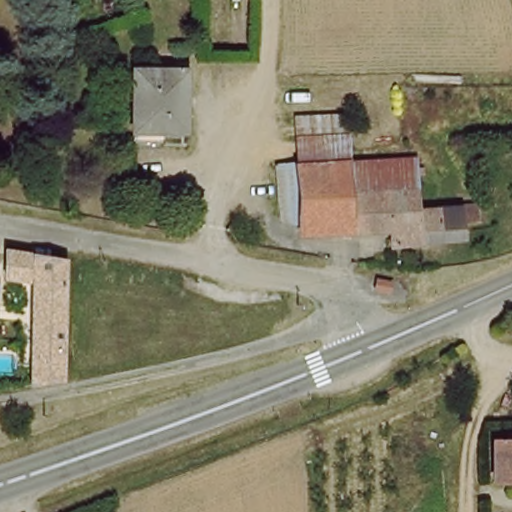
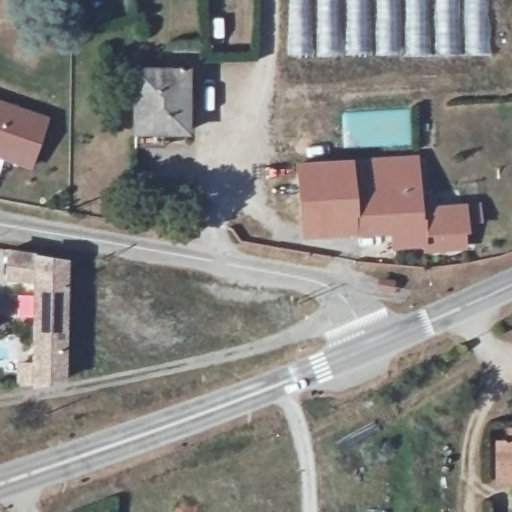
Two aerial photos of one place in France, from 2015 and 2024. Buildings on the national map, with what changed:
new [(487,0),(487,56),(285,59),(285,0),(487,0)]
unchanged [(182,74),(182,140),(128,139),(131,73),(182,74)]
new [(48,118),(28,172),(0,161),(0,101),(48,118)]
demolished [(349,114),(350,156),(299,161),(298,115),(349,114)]
unchanged [(350,156),(360,156),(366,156),(407,153),(414,205),(452,202),(452,195),(468,193),(470,213),(455,214),(460,252),(417,257),(414,236),(384,239),(381,221),(346,224),(344,218),(350,156)]
unchanged [(299,161),(350,156),(344,218),(295,221),(288,161),(299,161)]
unchanged [(21,286),(0,284),(0,248),(67,258),(58,376),(22,378),(21,286)]
unchanged [(512,445),(512,483),(494,484),(494,446),(512,445)]

